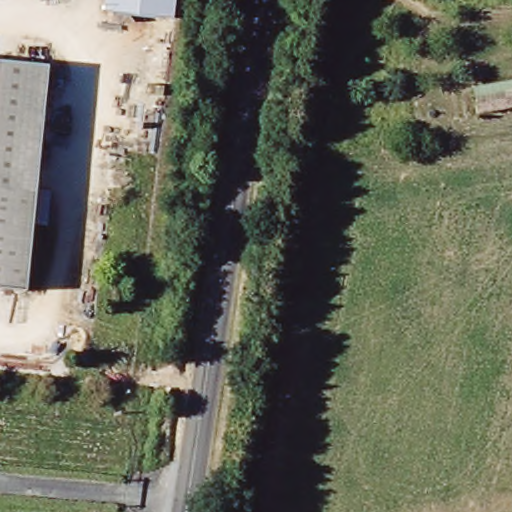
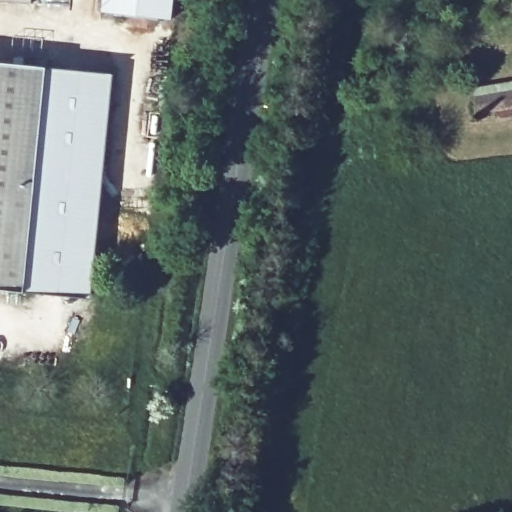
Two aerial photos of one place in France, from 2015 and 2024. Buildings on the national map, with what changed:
unchanged [(103,10),(104,0),(176,0),(173,20),(103,10)]
unchanged [(46,66),(23,291),(0,288),(0,62),(46,66)]
new [(46,66),(114,74),(90,298),(23,291),(46,66)]
unchanged [(479,104),(484,102),(483,88),(512,83),(512,110),(483,116),(479,104)]

